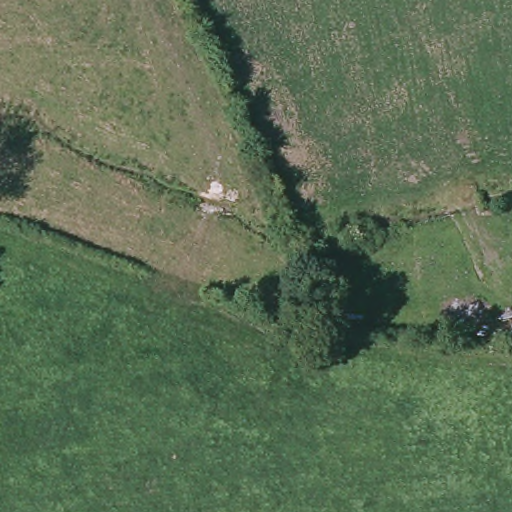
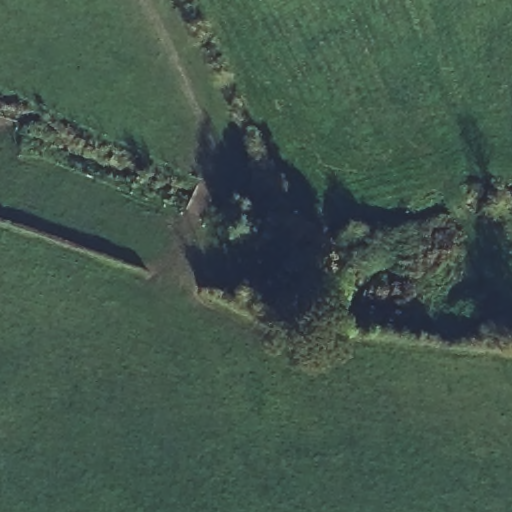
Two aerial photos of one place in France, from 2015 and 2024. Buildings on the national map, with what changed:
[]

